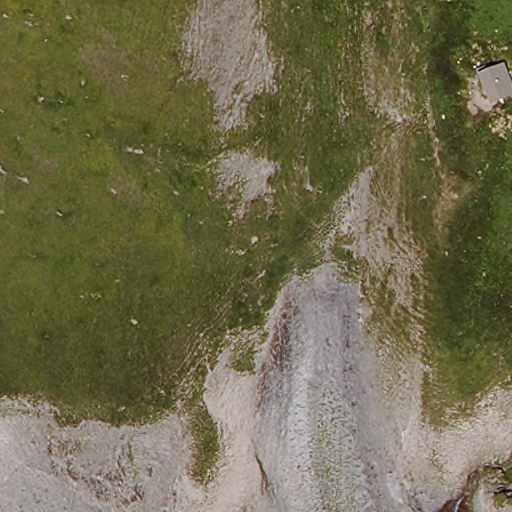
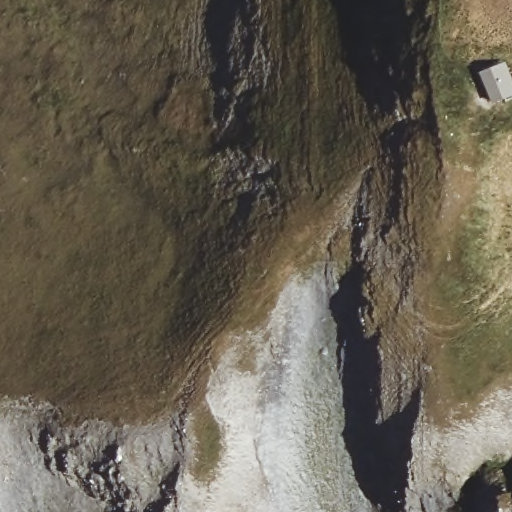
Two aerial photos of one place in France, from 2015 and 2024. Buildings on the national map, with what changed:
unchanged [(510,90),(485,99),(478,63),(500,58),(510,90)]

